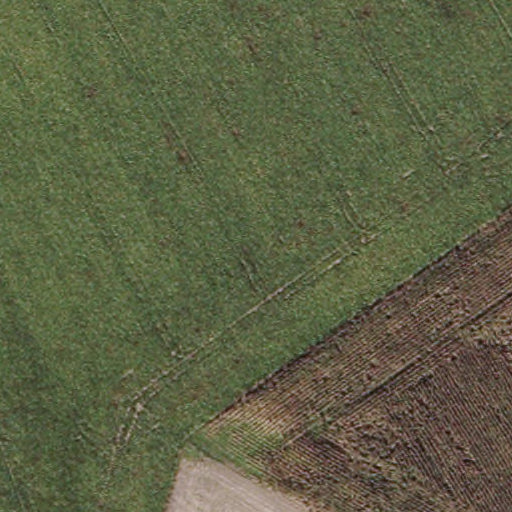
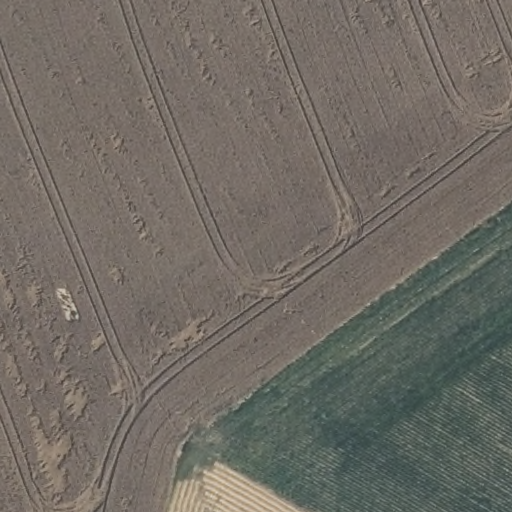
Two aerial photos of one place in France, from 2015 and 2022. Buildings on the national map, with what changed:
[]

